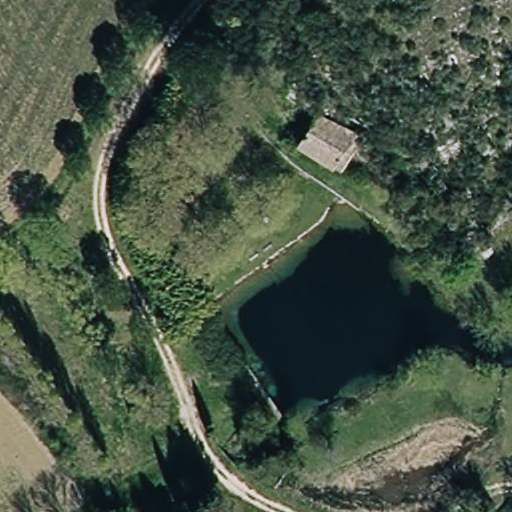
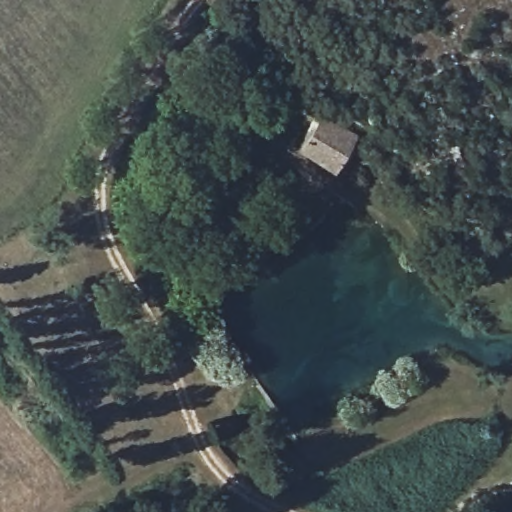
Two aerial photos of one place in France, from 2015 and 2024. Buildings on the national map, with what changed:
unchanged [(358,137),(338,171),(302,149),(322,116),(358,137)]

